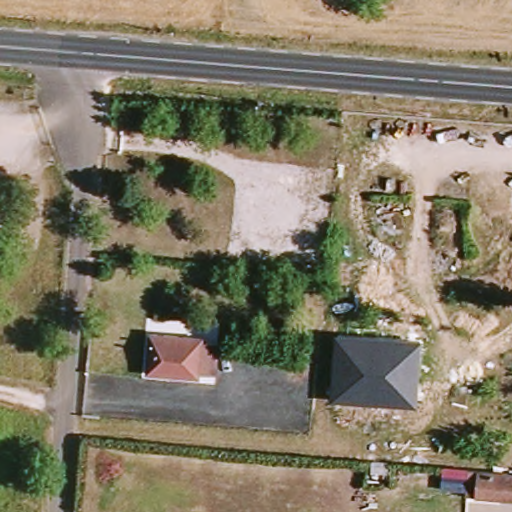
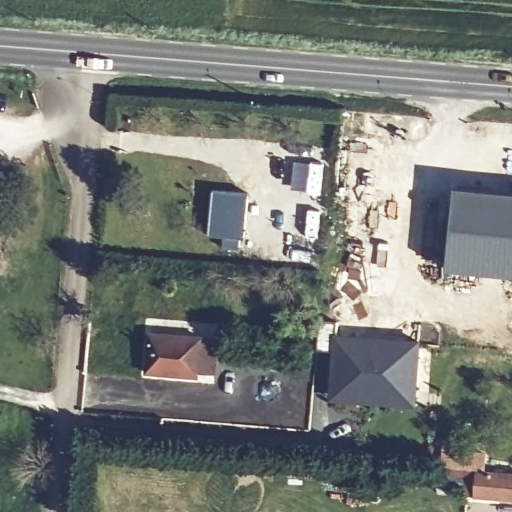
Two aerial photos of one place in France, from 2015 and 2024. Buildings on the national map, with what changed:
new [(448,271),(456,188),(512,194),(512,277),(448,271)]
unchanged [(232,328),(243,329),(246,312),(274,315),(273,331),(319,338),(315,366),(231,357),(232,328)]
unchanged [(423,339),(418,408),(331,401),(335,333),(423,339)]
unchanged [(141,334),(193,336),(193,341),(209,341),(208,374),(193,373),(188,378),(139,376),(141,334)]
unchanged [(512,473),(512,500),(471,498),(472,470),(512,473)]

